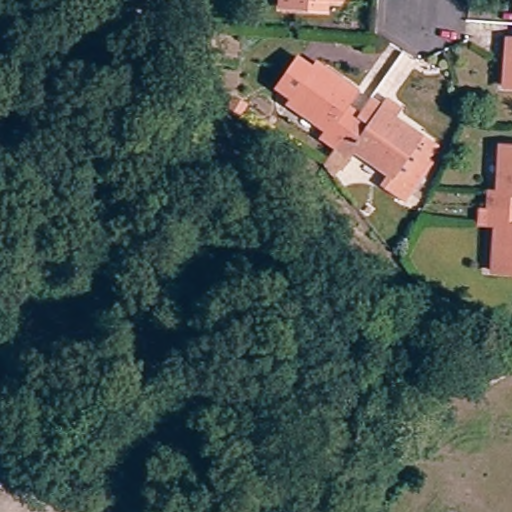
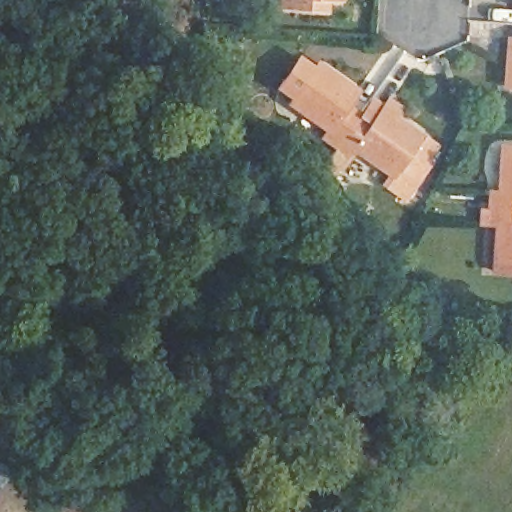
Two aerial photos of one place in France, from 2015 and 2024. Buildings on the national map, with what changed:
unchanged [(318,0),(318,1),(307,0),(318,0)]
unchanged [(508,86),(512,44),(512,86),(508,86)]
unchanged [(358,119),(341,146),(327,137),(332,129),(293,103),(318,65),(356,91),(345,109),(358,119)]
unchanged [(382,180),(391,168),(359,146),(353,154),(341,146),(360,119),(371,128),(386,106),(437,140),(412,182),(405,193),(382,180)]
unchanged [(492,204),(493,189),(502,189),(506,144),(512,145),(512,205),(492,204)]
unchanged [(496,264),(500,220),(491,220),(492,204),(512,205),(512,266),(496,264)]

